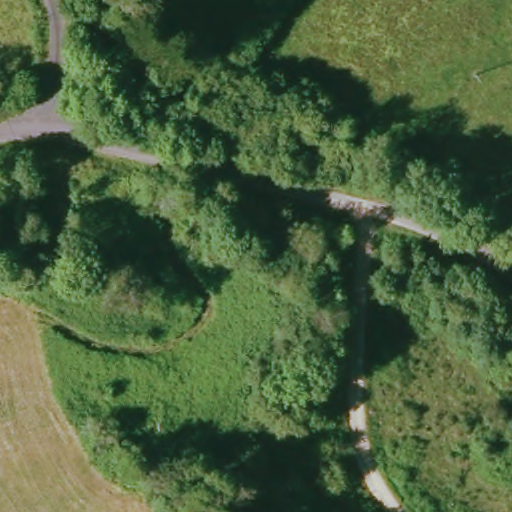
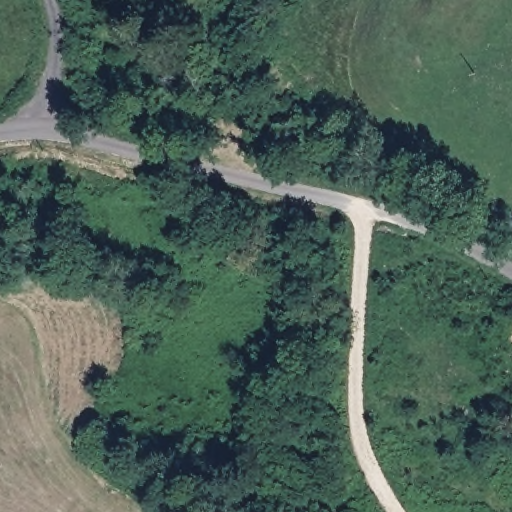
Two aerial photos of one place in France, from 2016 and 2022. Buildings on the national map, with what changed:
[]

